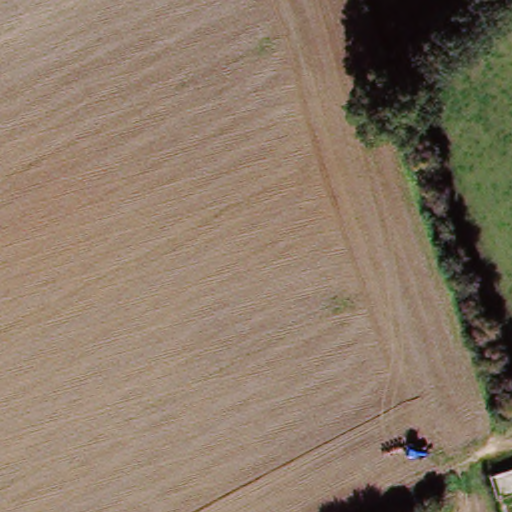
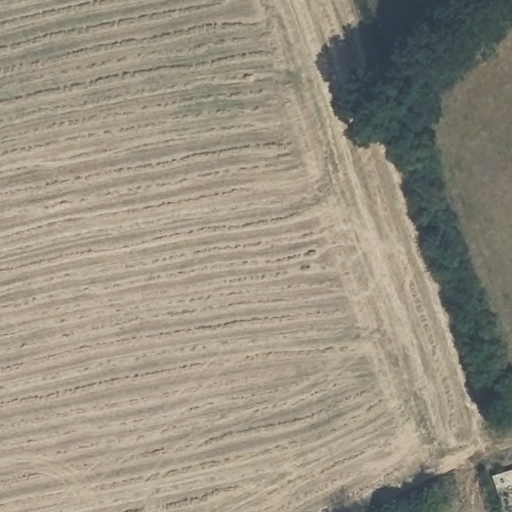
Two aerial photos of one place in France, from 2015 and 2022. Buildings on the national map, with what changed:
unchanged [(490,479),(512,472),(512,497),(498,500),(490,479)]

